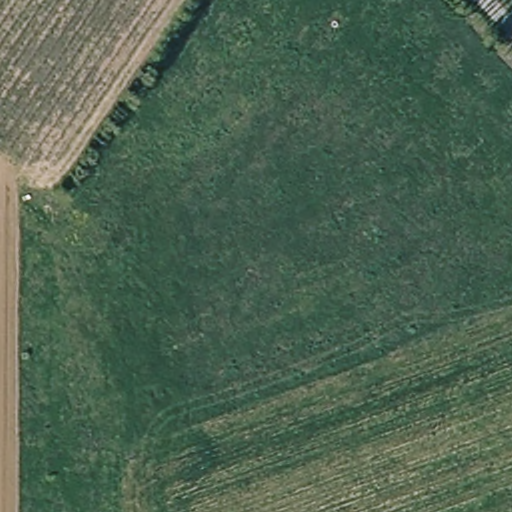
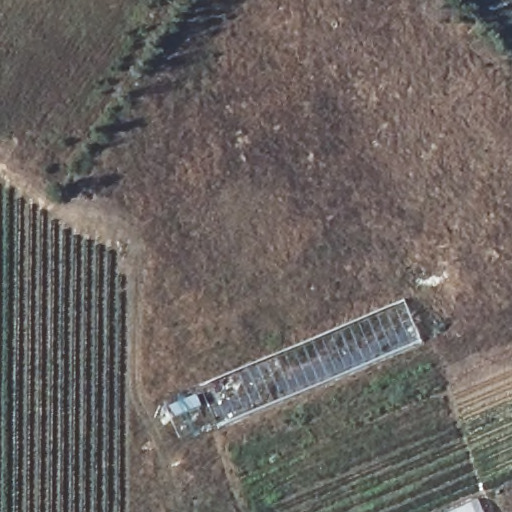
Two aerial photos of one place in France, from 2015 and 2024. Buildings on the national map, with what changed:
new [(406,301),(422,341),(218,426),(202,387),(406,301)]
new [(485,512),(459,512),(481,502),(485,512)]

